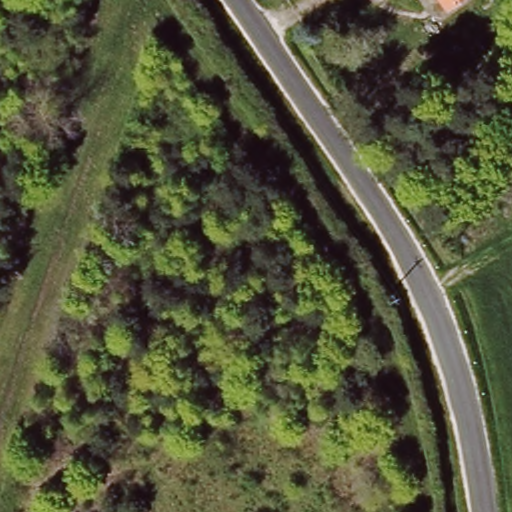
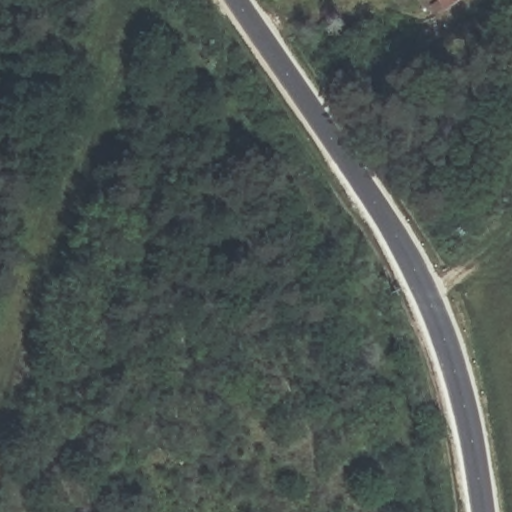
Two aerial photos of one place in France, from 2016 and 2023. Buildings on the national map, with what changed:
unchanged [(438,0),(464,0),(445,11),(438,0)]

